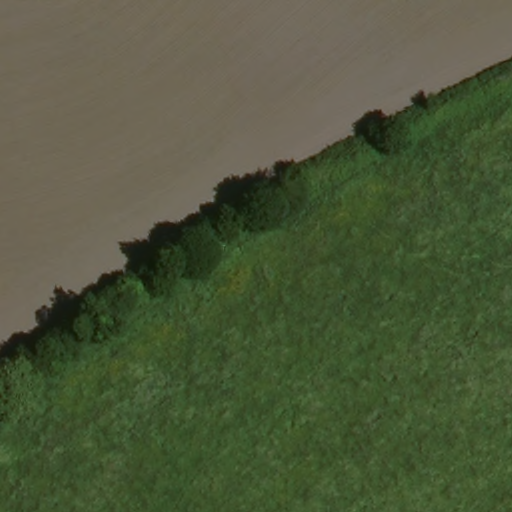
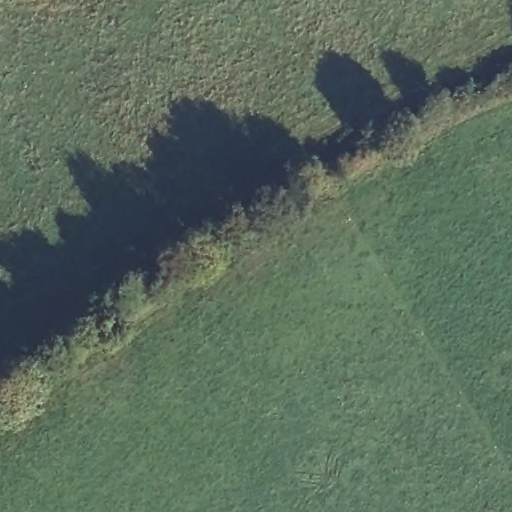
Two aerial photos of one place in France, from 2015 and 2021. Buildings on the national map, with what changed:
[]

